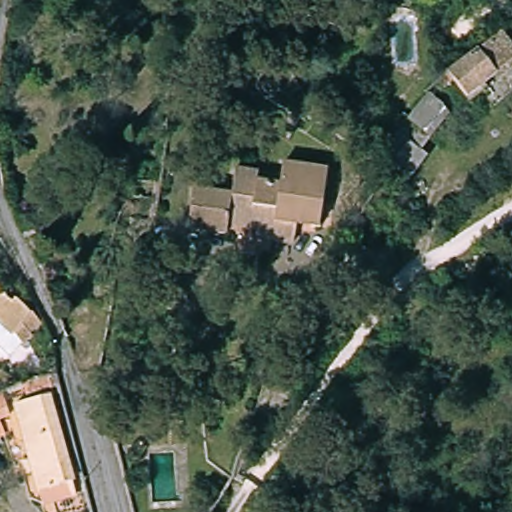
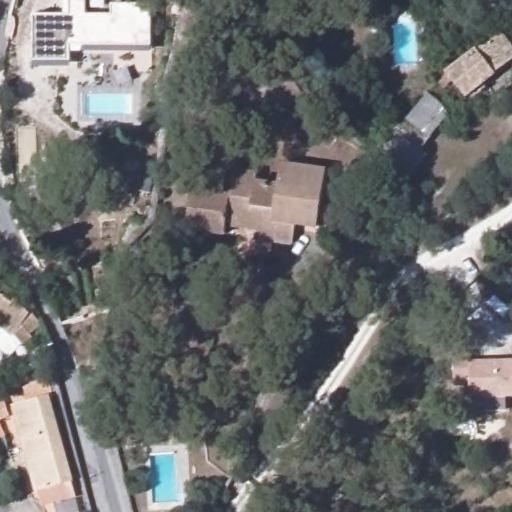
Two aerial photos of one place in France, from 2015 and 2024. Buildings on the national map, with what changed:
new [(64,0),(87,0),(87,15),(111,16),(111,5),(152,6),(151,52),(71,51),(71,66),(33,67),(33,15),(64,15),(64,0)]
unchanged [(512,40),(512,62),(469,96),(449,72),(505,31),(512,40)]
unchanged [(219,65),(209,85),(181,72),(189,51),(219,65)]
unchanged [(375,171),(385,159),(373,151),(400,115),(407,118),(425,96),(446,111),(419,150),(426,154),(398,190),(380,175),(375,171)]
unchanged [(180,234),(183,191),(222,194),(224,165),(274,169),(316,171),(313,217),(312,229),(290,227),(288,247),(247,245),(248,239),(219,236),(180,234)]
unchanged [(129,197),(135,169),(150,171),(144,200),(129,197)]
unchanged [(9,293),(3,300),(8,305),(11,301),(27,316),(37,327),(26,336),(29,339),(20,347),(18,345),(5,360),(0,355),(0,287),(9,293)]
new [(473,361),(512,360),(512,398),(471,399),(470,387),(454,388),(454,371),(471,371),(473,361)]
unchanged [(26,401),(22,391),(44,382),(76,498),(42,507),(32,474),(20,477),(16,462),(28,458),(13,405),(26,401)]
unchanged [(2,399),(9,416),(0,420),(0,400),(2,399)]
unchanged [(6,435),(0,438),(0,425),(6,435)]

